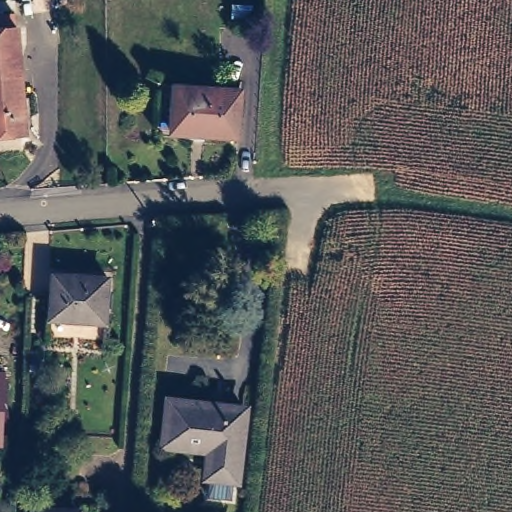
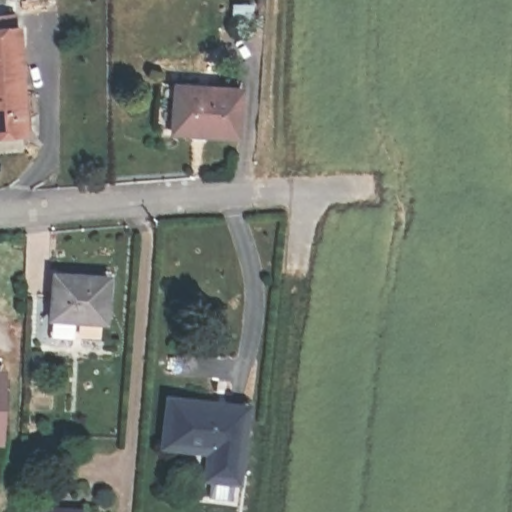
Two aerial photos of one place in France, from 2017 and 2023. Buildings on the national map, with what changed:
unchanged [(18,21),(27,127),(0,129),(0,22),(18,21)]
unchanged [(240,88),(236,135),(172,130),(176,84),(240,88)]
unchanged [(107,280),(104,323),(51,320),(54,277),(107,280)]
unchanged [(0,434),(0,369),(3,368),(11,433),(0,434)]
unchanged [(172,398),(247,409),(237,479),(210,475),(212,448),(165,442),(172,398)]

